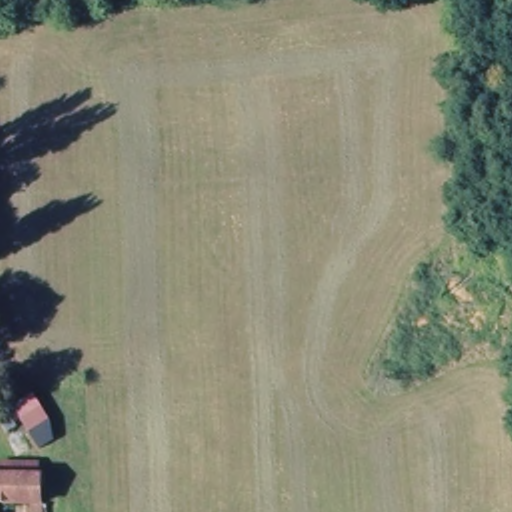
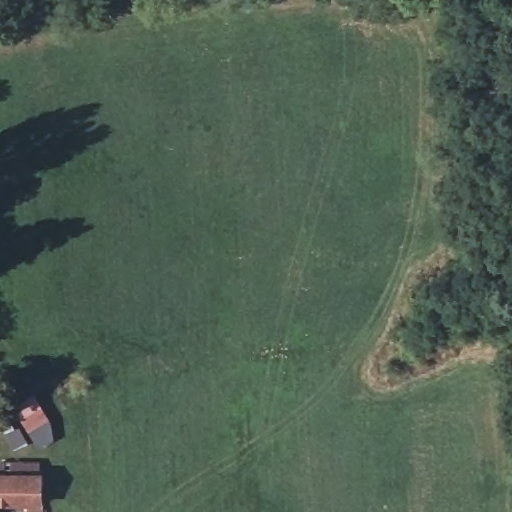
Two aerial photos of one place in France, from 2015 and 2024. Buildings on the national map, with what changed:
unchanged [(33,389),(51,420),(55,439),(39,446),(11,402),(33,389)]
unchanged [(43,512),(29,512),(29,510),(0,509),(0,477),(44,481),(43,512)]

